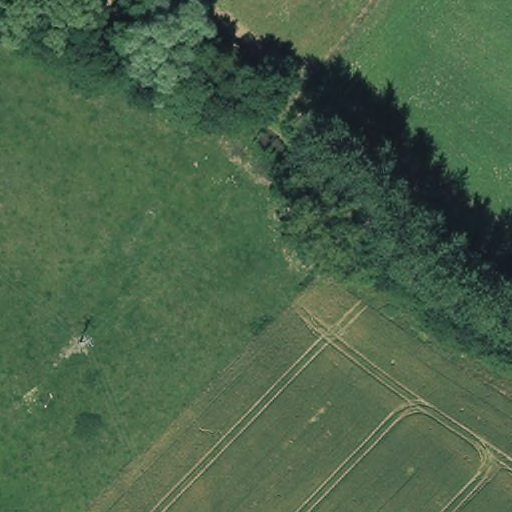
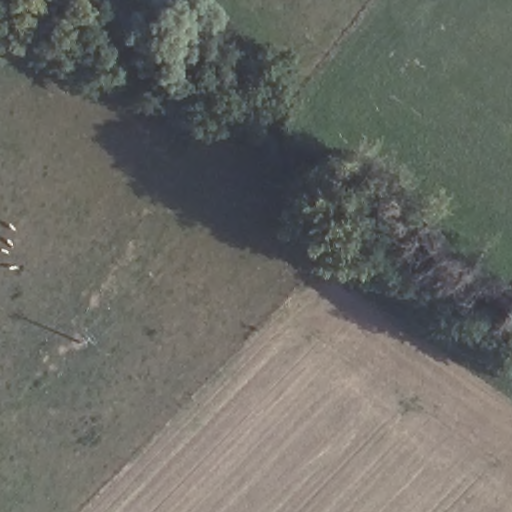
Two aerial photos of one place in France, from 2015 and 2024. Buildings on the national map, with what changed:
unchanged [(228,43),(249,58),(237,75),(216,59),(214,57),(226,41),(228,43)]

